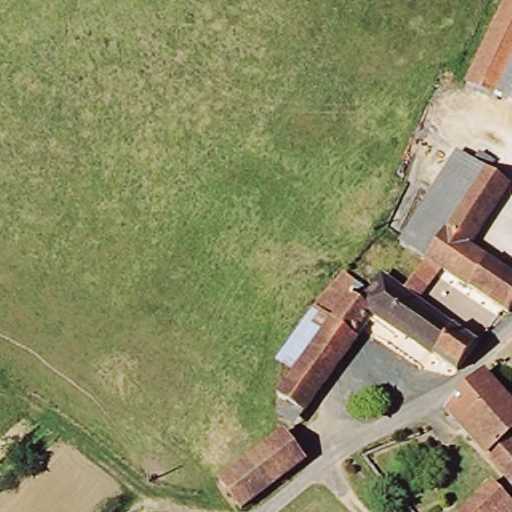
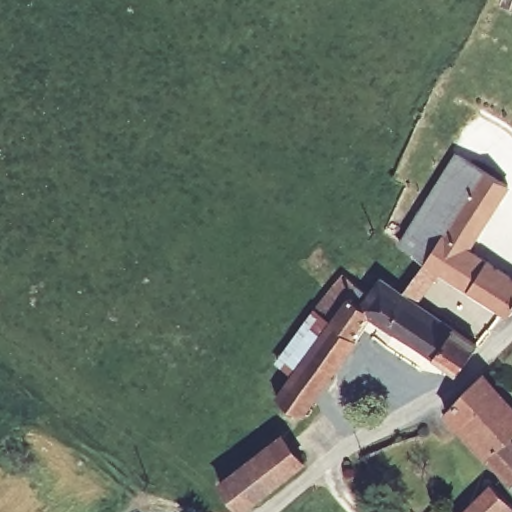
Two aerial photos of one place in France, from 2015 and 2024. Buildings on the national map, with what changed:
demolished [(470,85),(510,0),(512,0),(512,76),(501,100),(470,85)]
unchanged [(507,307),(445,267),(428,256),(403,241),(404,240),(460,154),(472,162),(481,150),(501,164),(494,173),(511,185),(471,243),(512,273),(512,307),(510,310),(507,307)]
unchanged [(283,411),(291,401),(281,395),(298,372),(280,359),(344,273),(371,293),(383,276),(406,291),(428,256),(445,267),(422,301),(481,343),(460,367),(372,311),(357,335),(363,338),(307,413),(300,423),(283,411)]
unchanged [(511,433),(491,454),(449,411),(488,372),(512,400),(512,432),(511,433)]
unchanged [(244,504),(225,480),(287,431),(307,457),(244,504)]
unchanged [(512,435),(512,478),(491,454),(511,433),(512,435)]
unchanged [(469,512),(499,482),(512,494),(512,512),(469,512)]

